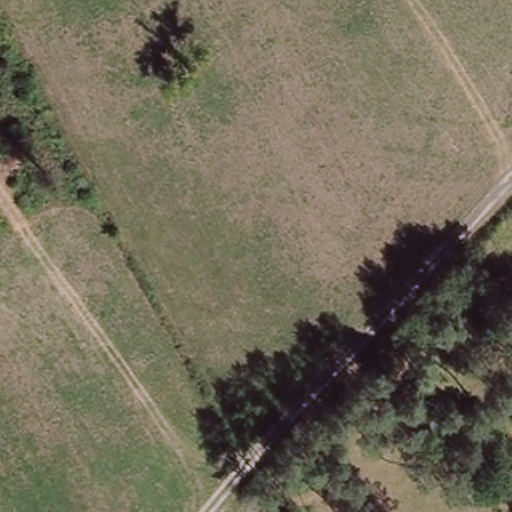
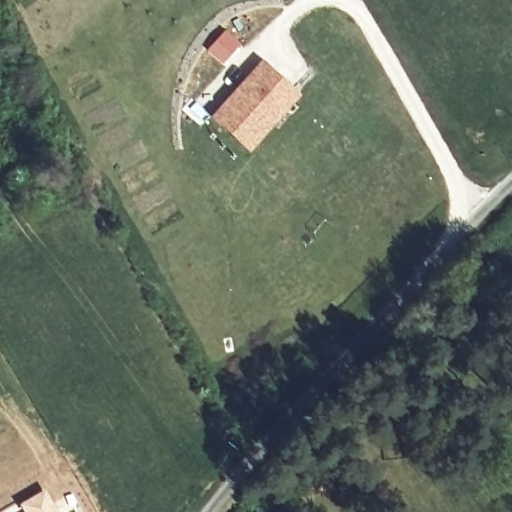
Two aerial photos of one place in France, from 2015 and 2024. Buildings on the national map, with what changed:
new [(250,153),(210,118),(262,60),(300,95),(250,153)]
new [(44,489),(58,512),(21,512),(17,504),(44,489)]

